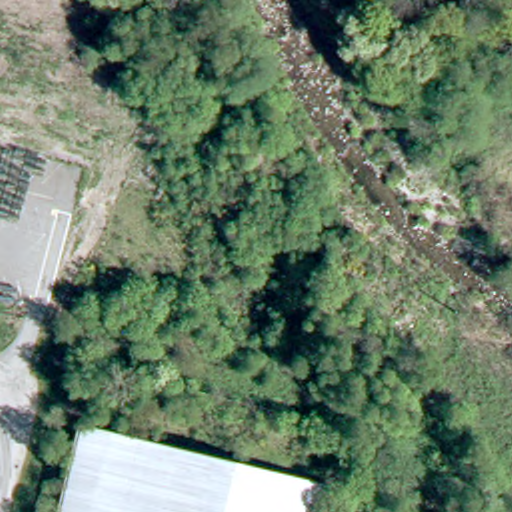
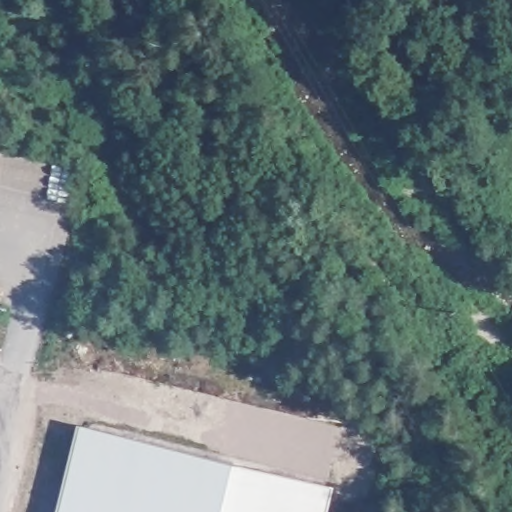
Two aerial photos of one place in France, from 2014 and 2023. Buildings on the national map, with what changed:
unchanged [(327,512),(68,512),(88,427),(333,487),(327,512)]

